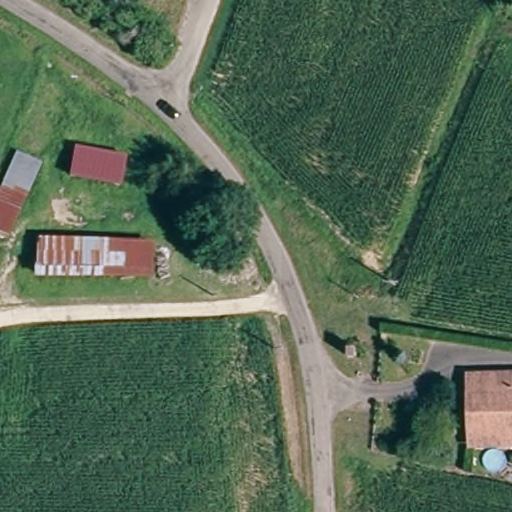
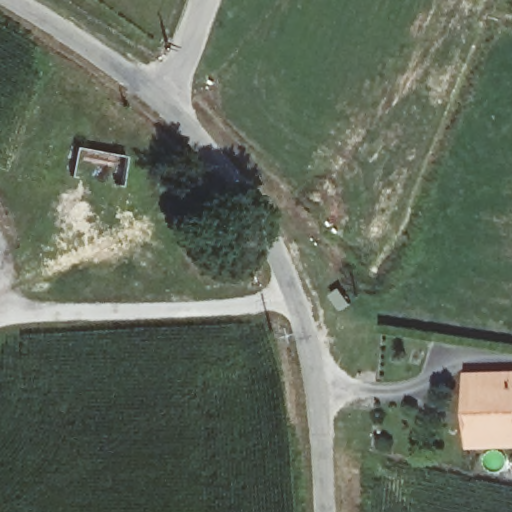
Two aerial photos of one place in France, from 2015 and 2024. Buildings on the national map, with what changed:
unchanged [(68,176),(74,144),(131,152),(128,185),(68,176)]
demolished [(33,167),(5,239),(0,237),(0,188),(12,158),(33,167)]
demolished [(35,277),(36,236),(151,238),(154,278),(35,277)]
demolished [(356,342),(343,345),(341,333),(354,330),(356,342)]
unchanged [(472,423),(480,423),(478,376),(512,375),(512,442),(475,445),(472,423)]

